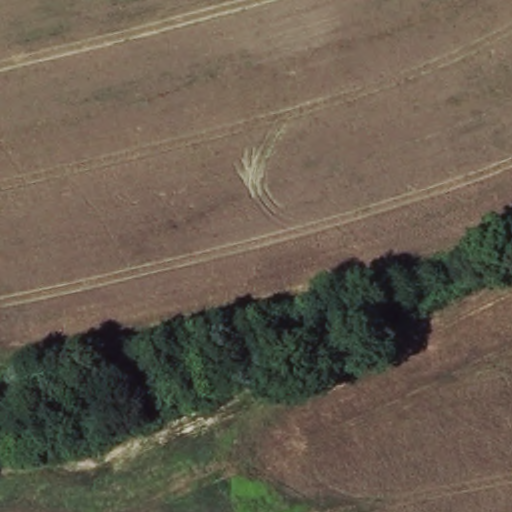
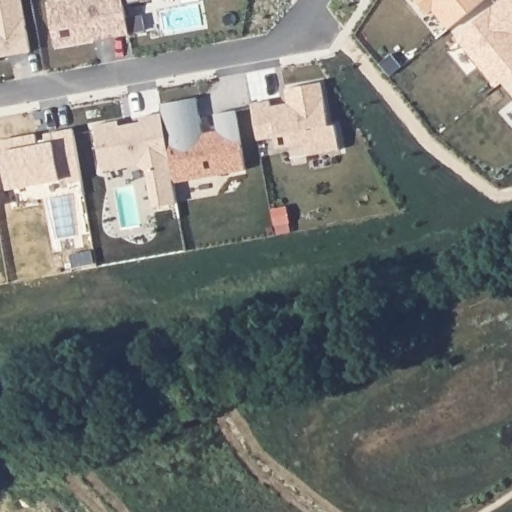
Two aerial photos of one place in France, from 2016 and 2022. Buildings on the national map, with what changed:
new [(31,52),(0,57),(0,0),(22,0),(31,52)]
new [(59,0),(123,0),(130,34),(56,48),(47,2),(59,0)]
new [(124,2),(124,0),(130,0),(124,2)]
new [(433,10),(428,13),(418,0),(483,0),(448,29),(433,10)]
new [(500,0),(512,0),(512,75),(503,82),(496,88),(455,37),(500,0)]
new [(503,82),(512,75),(512,93),(503,82)]
new [(270,101),(271,107),(288,104),(285,89),(321,83),(329,127),(336,125),(340,150),(308,156),(306,144),(277,149),(275,137),(258,140),(252,105),(270,101)]
new [(178,203),(162,114),(160,104),(196,97),(205,139),(220,136),(216,113),(235,110),(246,176),(230,178),(219,195),(178,203)]
new [(119,122),(120,131),(142,127),(140,118),(162,114),(178,203),(154,208),(147,171),(139,165),(102,172),(95,126),(119,122)]

